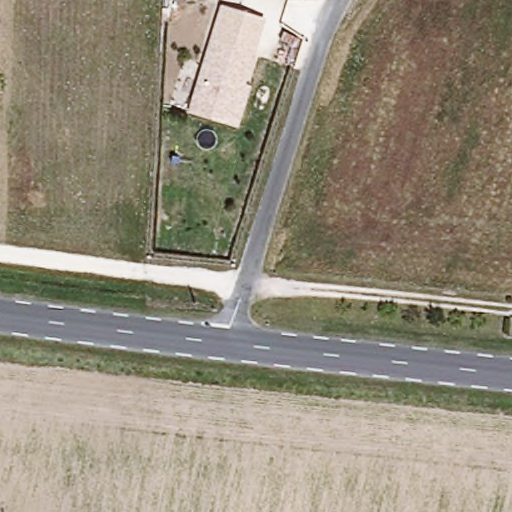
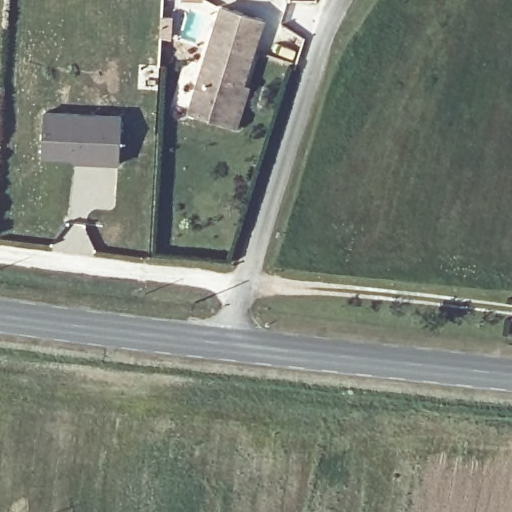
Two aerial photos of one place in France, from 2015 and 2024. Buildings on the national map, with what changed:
unchanged [(222,6),(267,19),(257,56),(251,54),(211,44),(222,6)]
unchanged [(241,111),(236,128),(186,115),(206,42),(211,44),(251,54),(242,85),(247,86),(241,111)]
new [(43,111),(122,114),(119,165),(40,159),(43,111)]

